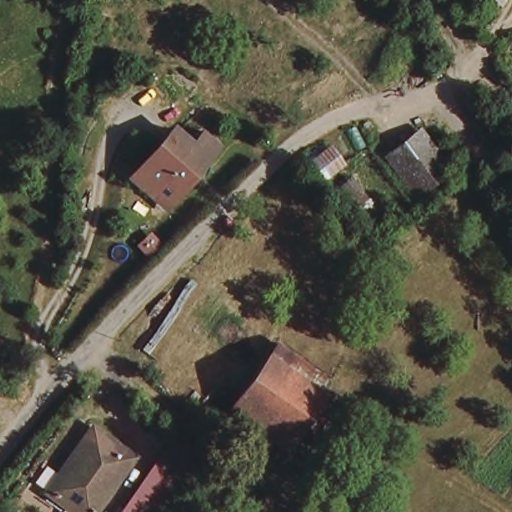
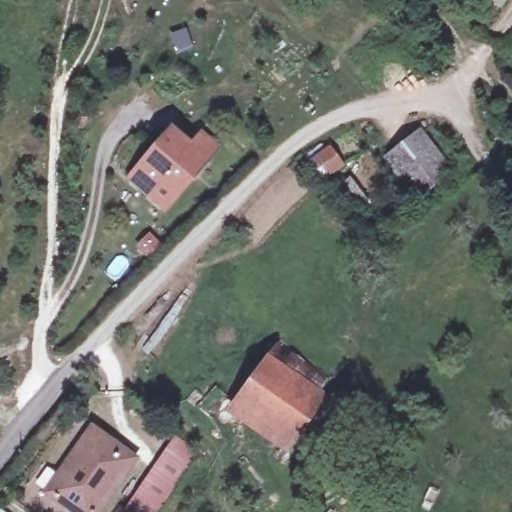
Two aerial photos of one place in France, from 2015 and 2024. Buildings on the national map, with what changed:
unchanged [(512,0),(504,11),(490,0),(512,0)]
unchanged [(418,134),(447,169),(416,196),(386,162),(418,134)]
unchanged [(158,153),(173,136),(193,154),(206,139),(223,156),(211,170),(168,217),(151,200),(133,181),(158,153)]
unchanged [(349,172),(322,187),(306,159),(332,144),(349,172)]
unchanged [(278,361),(331,403),(319,419),(265,380),(278,361)]
unchanged [(265,380),(319,419),(293,456),(240,415),(265,380)]
unchanged [(129,456),(93,512),(69,512),(42,495),(88,428),(129,456)]
unchanged [(182,459),(186,462),(158,508),(153,504),(134,492),(166,447),(182,459)]

